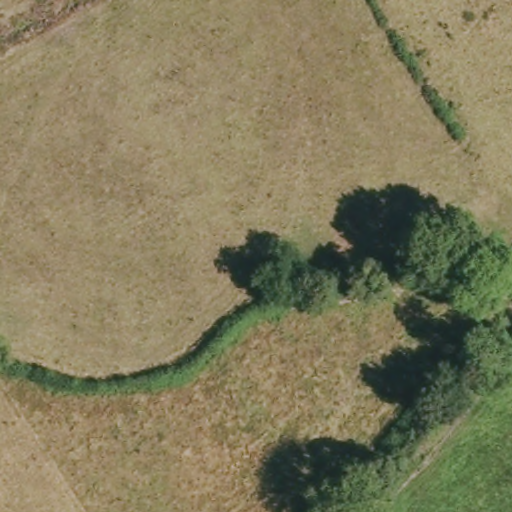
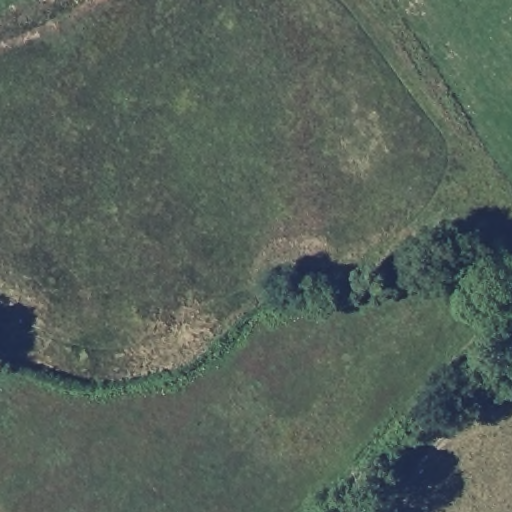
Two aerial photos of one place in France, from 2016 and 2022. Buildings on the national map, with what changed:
[]

